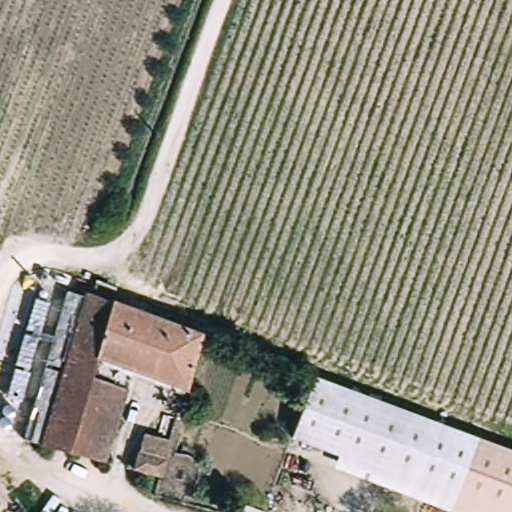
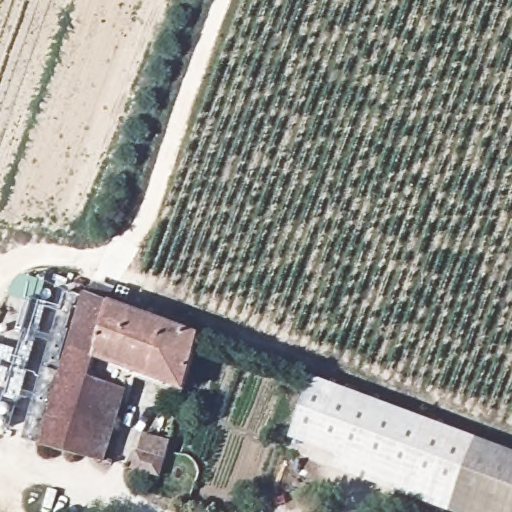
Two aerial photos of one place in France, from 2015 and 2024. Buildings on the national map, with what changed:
unchanged [(208,340),(188,393),(103,363),(97,379),(128,391),(101,463),(40,449),(94,302),(100,303),(208,340)]
unchanged [(480,435),(457,495),(289,437),(311,377),(480,435)]
unchanged [(512,512),(508,512),(457,495),(480,435),(512,445),(512,512)]
unchanged [(157,486),(132,477),(145,445),(168,453),(157,486)]

